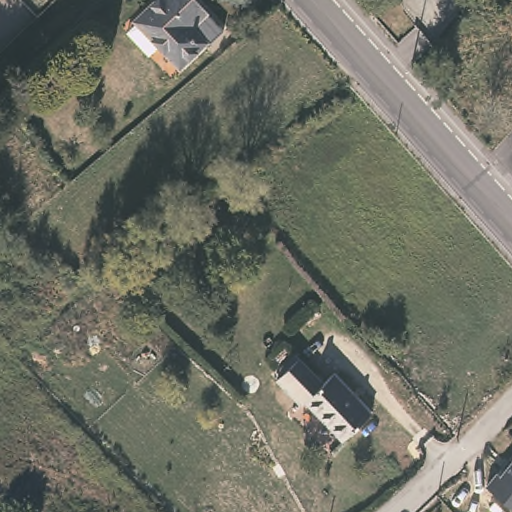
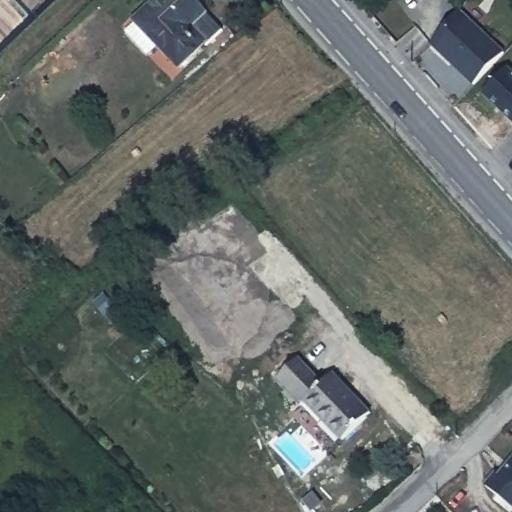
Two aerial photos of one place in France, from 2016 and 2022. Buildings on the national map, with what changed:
unchanged [(193,22),(208,38),(181,62),(160,41),(151,50),(131,28),(140,19),(137,15),(153,0),(199,0),(207,8),(193,22)]
new [(466,14),(505,50),(475,83),(436,47),(466,14)]
new [(509,66),(512,69),(512,118),(484,92),(509,66)]
unchanged [(0,118),(1,120),(0,121),(0,118)]
unchanged [(324,383),(337,373),(374,412),(343,441),(306,402),(303,405),(278,379),(300,358),(324,383)]
unchanged [(485,487),(496,475),(499,478),(512,464),(512,511),(497,497),(485,487)]

